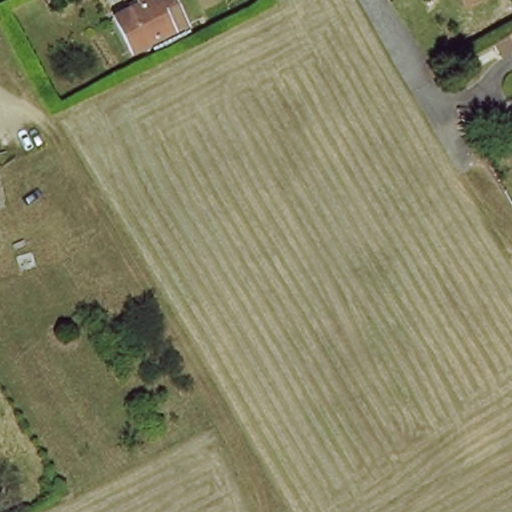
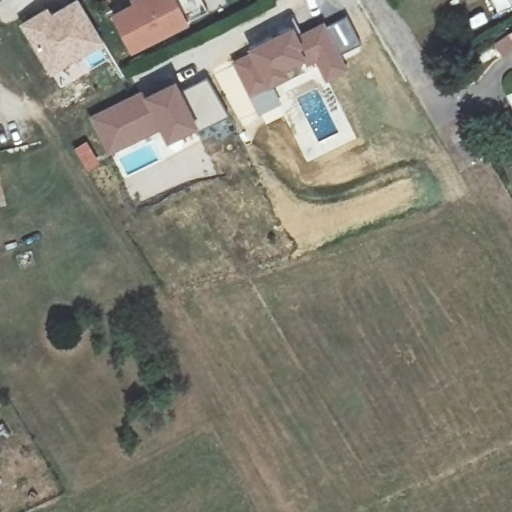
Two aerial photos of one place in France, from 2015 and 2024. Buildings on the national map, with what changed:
unchanged [(141,10),(140,2),(145,0),(177,0),(190,25),(130,55),(113,22),(141,10)]
new [(46,10),(51,18),(78,1),(103,42),(52,74),(23,26),(46,10)]
new [(298,33),(324,20),(327,26),(347,15),(360,42),(341,50),(349,70),(326,82),(315,64),(274,85),(283,104),(259,116),(230,61),(259,42),(294,25),(298,33)]
new [(207,77),(228,115),(200,130),(181,89),(207,77)]
new [(176,79),(181,89),(200,130),(167,144),(159,131),(143,94),(176,79)]
new [(141,89),(143,94),(159,131),(109,156),(88,116),(141,89)]
unchanged [(4,197),(0,198),(0,176),(4,197)]

